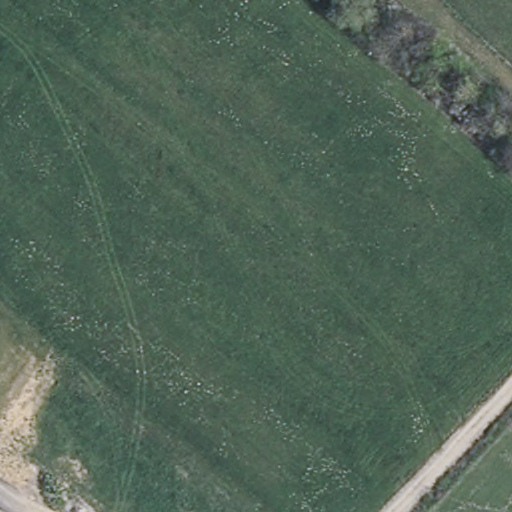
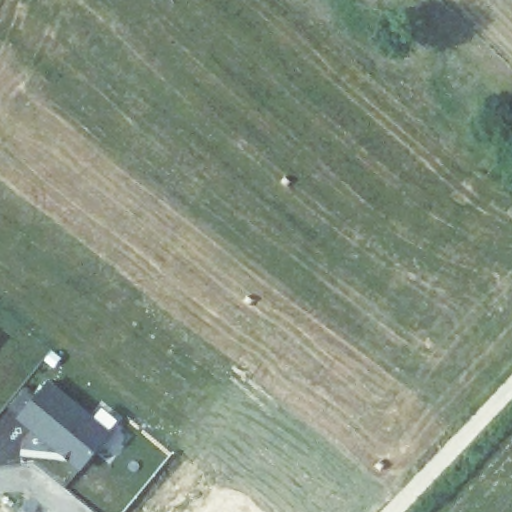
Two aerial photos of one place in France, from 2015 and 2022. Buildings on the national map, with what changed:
new [(47,382),(110,433),(84,464),(77,464),(72,459),(69,452),(65,448),(62,452),(42,435),(43,434),(34,426),(33,427),(19,416),(47,382)]
new [(65,448),(69,452),(72,459),(62,451),(65,448)]

